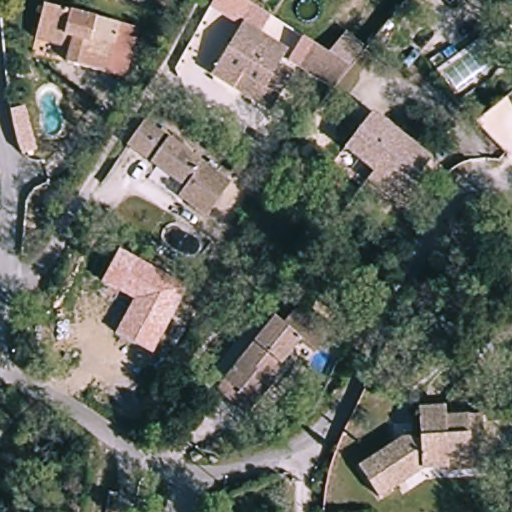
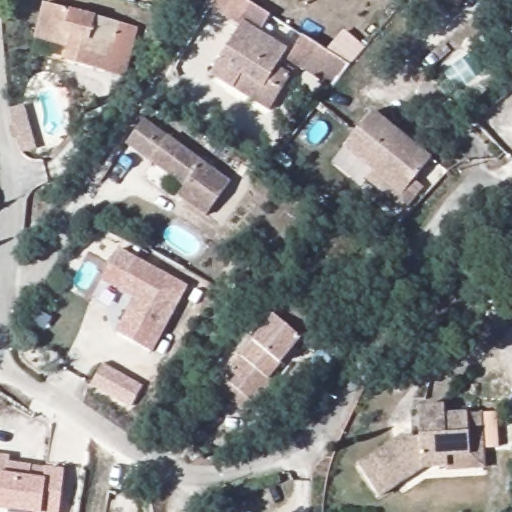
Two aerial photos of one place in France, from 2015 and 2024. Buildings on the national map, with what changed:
unchanged [(41,36),(52,1),(122,23),(105,75),(70,64),(35,52),(41,36)]
unchanged [(235,85),(215,74),(248,22),(292,50),(282,66),(295,74),(286,90),(272,110),(235,85)]
unchanged [(314,40),(332,50),(347,30),(368,45),(336,90),(300,65),(314,40)]
new [(37,150),(20,154),(9,110),(26,106),(37,150)]
unchanged [(373,114),(428,165),(398,198),(343,147),(373,114)]
unchanged [(147,123),(153,116),(232,188),(205,216),(180,193),(187,185),(162,161),(134,136),(147,123)]
unchanged [(120,249),(188,287),(153,355),(115,333),(132,300),(102,285),(120,249)]
unchanged [(330,332),(317,349),(300,337),(271,376),(277,381),(260,405),(230,384),(273,322),(278,324),(292,305),(330,332)]
new [(142,385),(130,407),(91,386),(102,364),(142,385)]
unchanged [(444,407),(444,414),(467,413),(470,455),(448,457),(448,468),(422,470),(378,496),(360,468),(393,443),(417,440),(415,408),(444,407)]
new [(6,463),(28,465),(43,467),(62,469),(58,512),(47,512),(0,507),(0,456),(7,456),(6,463)]

